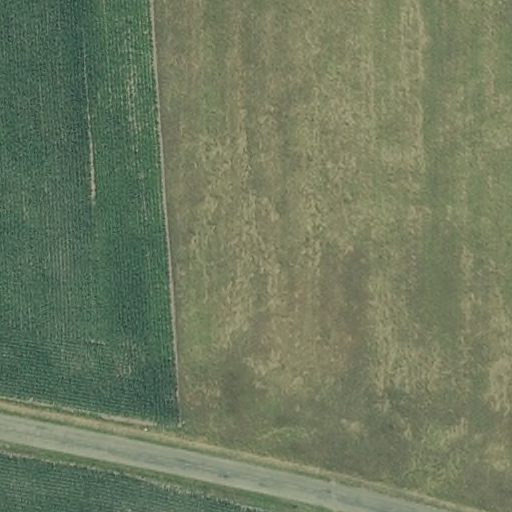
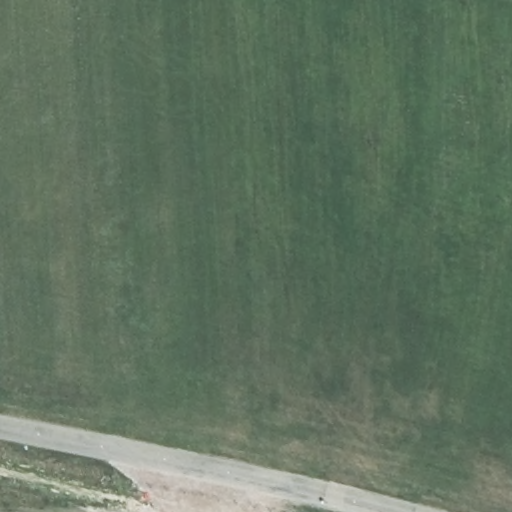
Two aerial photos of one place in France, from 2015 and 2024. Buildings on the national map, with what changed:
[]

